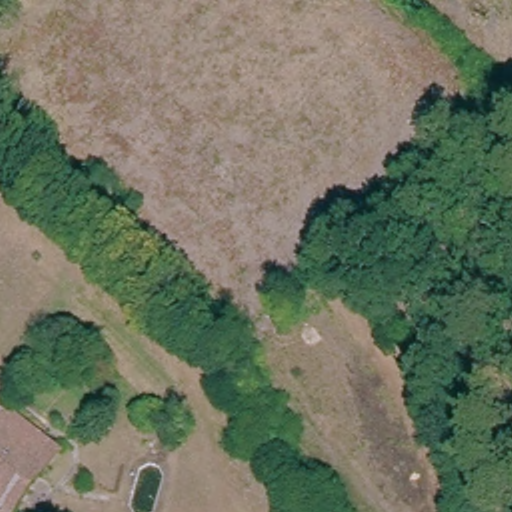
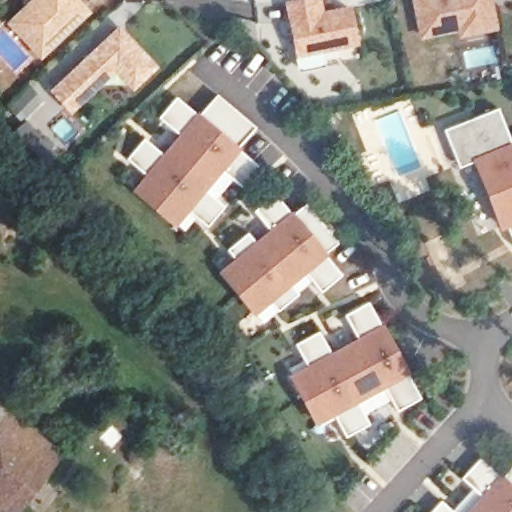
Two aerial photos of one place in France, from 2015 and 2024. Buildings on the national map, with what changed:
new [(76,0),(87,11),(41,54),(26,37),(11,21),(22,11),(33,0),(76,0)]
new [(317,0),(320,13),(348,7),(355,41),(318,49),(322,64),(299,68),(286,2),(294,0),(317,0)]
new [(493,26),(458,33),(457,27),(420,35),(413,0),(488,0),(489,6),(493,26)]
new [(119,28),(154,66),(133,86),(116,67),(71,109),(53,89),(119,28)]
new [(244,185),(225,169),(207,189),(225,206),(207,225),(189,210),(175,226),(131,190),(145,172),(127,157),(145,137),(162,152),(180,132),(159,116),(177,95),(197,112),(198,110),(201,112),(217,93),(256,126),(240,144),(244,147),(241,150),(261,166),(244,185)]
new [(508,224),(499,227),(473,161),(460,166),(445,129),(498,107),(512,140),(512,234),(508,224)]
new [(321,291),(306,272),(292,284),(300,293),(279,310),(270,300),(254,313),(217,272),(235,257),(227,249),(248,232),(256,240),(271,227),(255,209),(276,192),(291,211),(293,210),(295,212),(306,202),(338,242),(327,251),(330,254),(327,256),(343,273),(321,291)]
new [(398,410),(386,386),(358,401),(370,423),(346,436),(335,414),(317,424),(290,374),(308,363),(297,342),(319,330),(332,351),(358,337),(346,313),(369,301),(382,323),(383,322),(411,372),(408,373),(422,397),(398,410)]
unchanged [(13,512),(0,512),(0,402),(61,450),(42,474),(27,493),(25,497),(13,512)]
new [(482,494),(462,476),(480,457),(500,475),(502,472),(505,475),(512,466),(512,512),(467,512),(482,494)]
new [(442,500),(455,512),(430,512),(442,500)]

